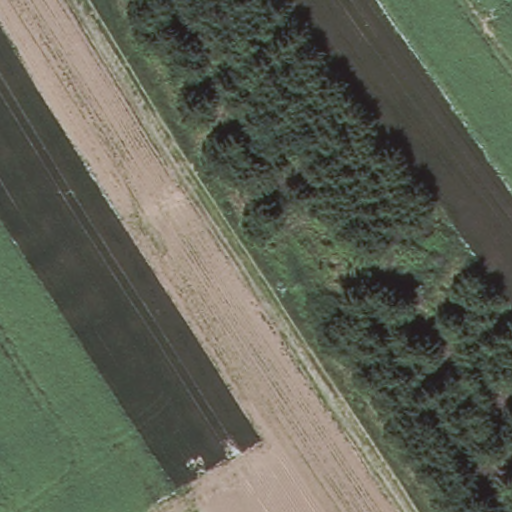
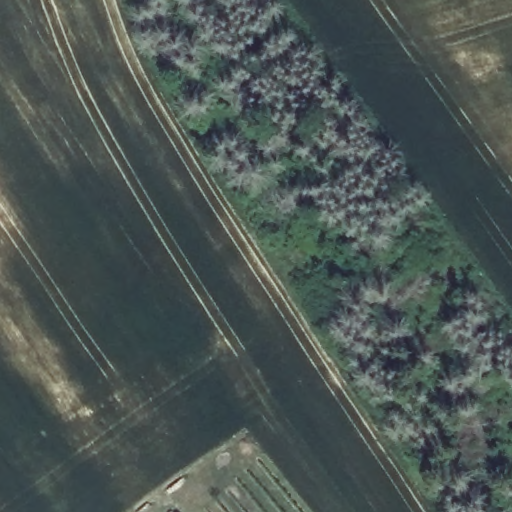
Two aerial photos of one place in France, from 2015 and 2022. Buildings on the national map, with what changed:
[]

